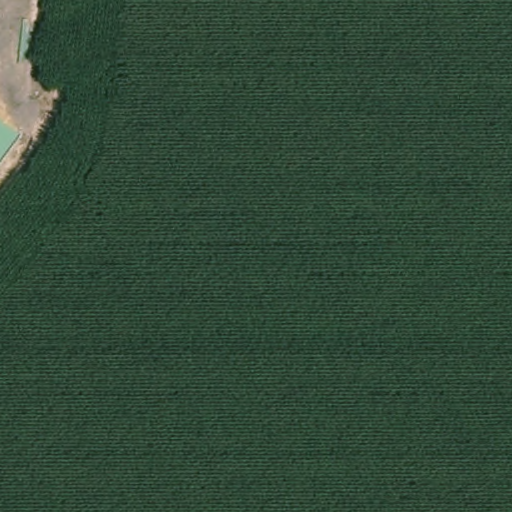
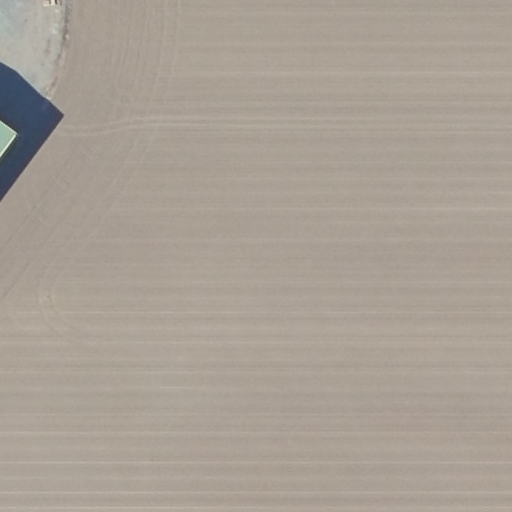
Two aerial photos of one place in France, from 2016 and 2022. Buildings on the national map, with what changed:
unchanged [(22,131),(0,161),(0,116),(22,131)]

